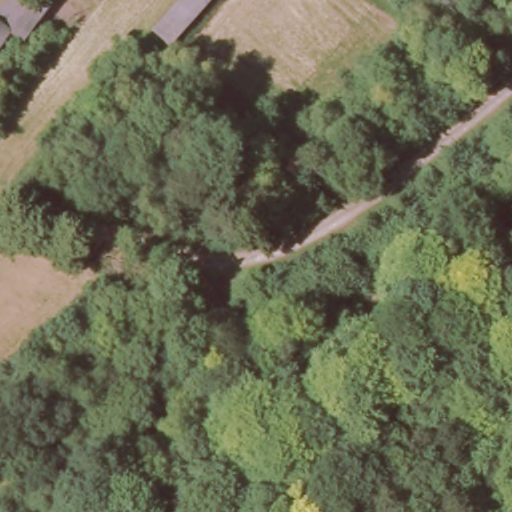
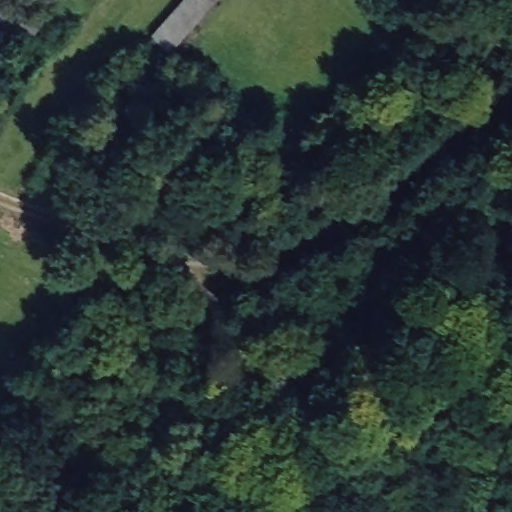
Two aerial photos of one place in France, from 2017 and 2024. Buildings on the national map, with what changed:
unchanged [(55,3),(23,51),(9,40),(0,54),(0,4),(3,0),(49,0),(55,3)]
unchanged [(175,0),(219,0),(169,58),(148,30),(175,0)]

